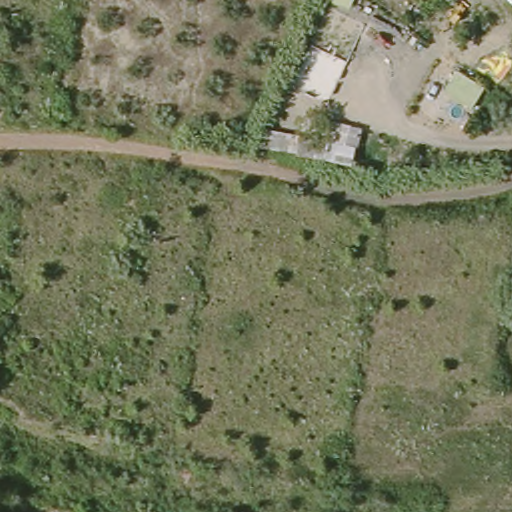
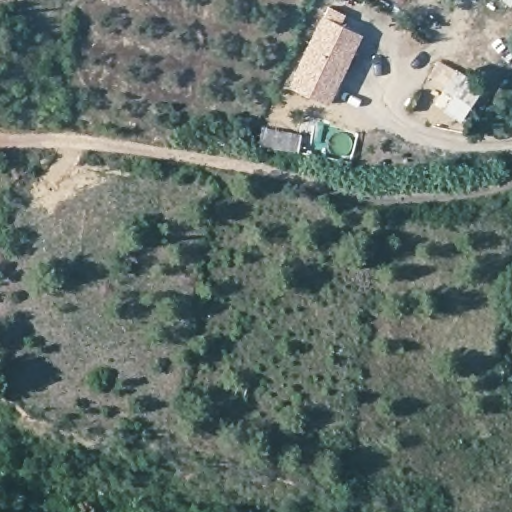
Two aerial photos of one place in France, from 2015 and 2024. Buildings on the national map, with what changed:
demolished [(321,10),(345,19),(343,27),(346,29),(337,49),(310,39),(321,10)]
new [(321,19),(321,14),(362,34),(329,105),(289,86),(321,19)]
demolished [(302,69),(314,71),(317,64),(327,68),(332,53),(350,59),(337,95),(333,91),(328,104),(310,97),(310,90),(295,85),(302,69)]
new [(481,84),(472,103),(446,89),(457,71),(481,84)]
demolished [(512,113),(512,116),(510,113),(512,113)]
new [(260,125),(299,134),(295,154),(256,145),(260,125)]
unchanged [(342,165),(323,160),(295,154),(300,134),(328,139),(348,145),(342,165)]

